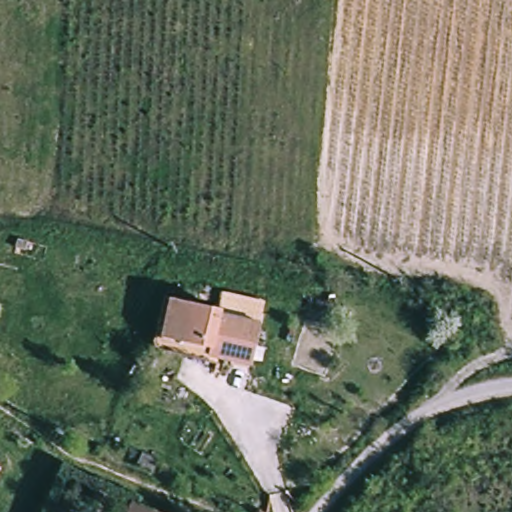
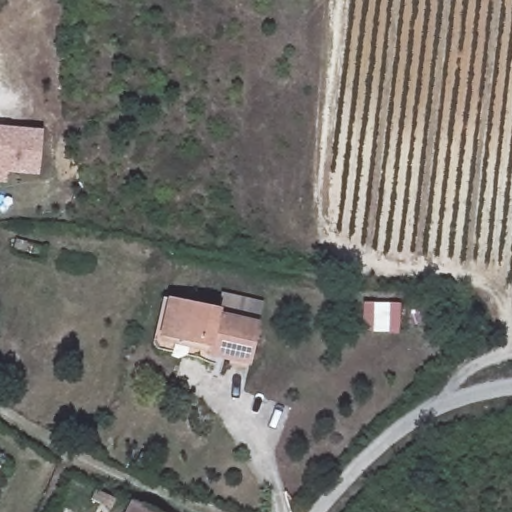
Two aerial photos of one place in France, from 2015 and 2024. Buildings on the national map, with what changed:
new [(43,129),(38,174),(7,173),(5,184),(0,184),(0,127),(11,128),(43,129)]
unchanged [(158,352),(161,340),(170,303),(220,314),(219,319),(258,329),(248,369),(208,359),(207,364),(158,352)]
unchanged [(135,502),(155,512),(130,512),(135,502)]

